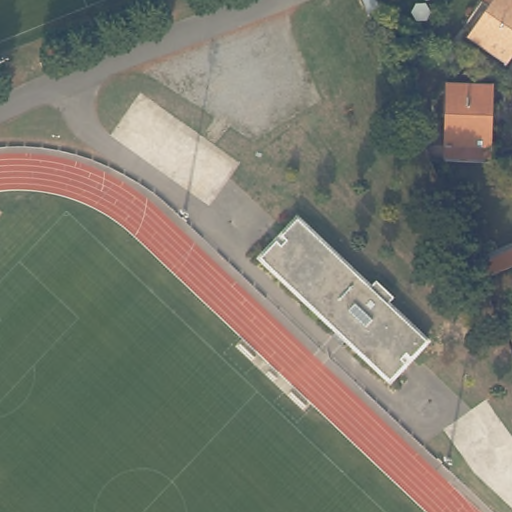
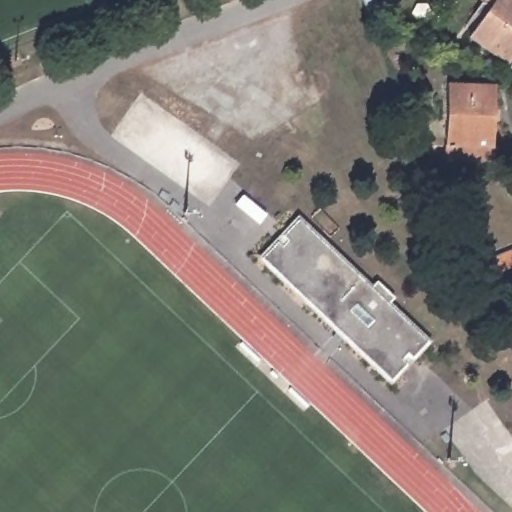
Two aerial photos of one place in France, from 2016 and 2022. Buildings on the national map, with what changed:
unchanged [(373,15),(366,0),(378,0),(383,12),(373,15)]
unchanged [(466,36),(478,24),(475,21),(470,27),(465,22),(483,2),(485,0),(484,0),(512,0),(512,54),(502,65),(466,36)]
unchanged [(497,85),(495,163),(468,162),(448,162),(449,84),(497,85)]
unchanged [(262,258),(279,240),(285,245),(289,240),(284,235),(301,217),(374,287),(379,282),(396,298),(391,304),(402,315),(431,342),(414,360),(409,355),(404,360),(409,365),(392,382),(262,258)]
unchanged [(479,265),(512,252),(512,268),(485,280),(479,265)]

